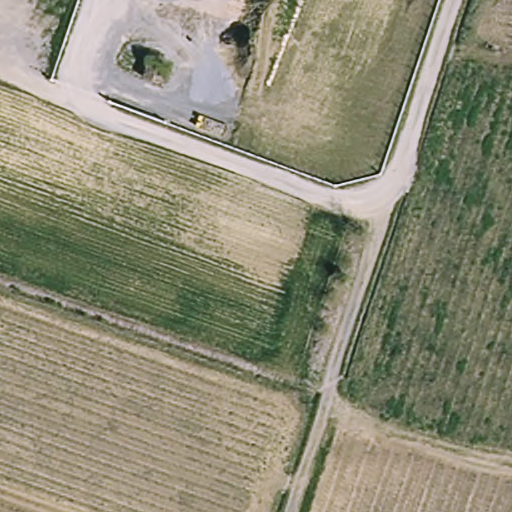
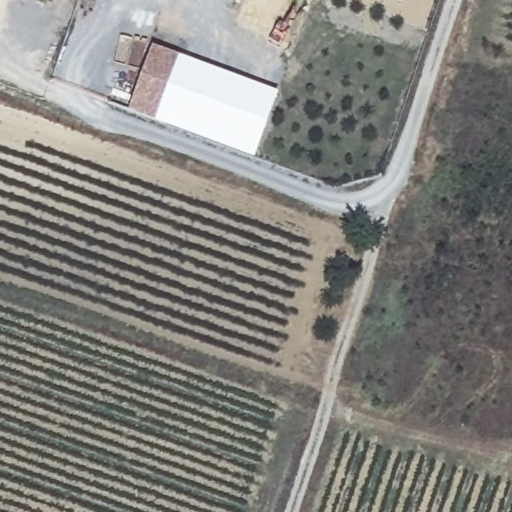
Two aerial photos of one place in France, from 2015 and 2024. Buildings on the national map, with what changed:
new [(180,55),(156,122),(128,112),(153,46),(180,55)]
new [(180,55),(277,94),(254,155),(156,122),(180,55)]
demolished [(161,85),(142,79),(150,58),(170,64),(161,85)]

